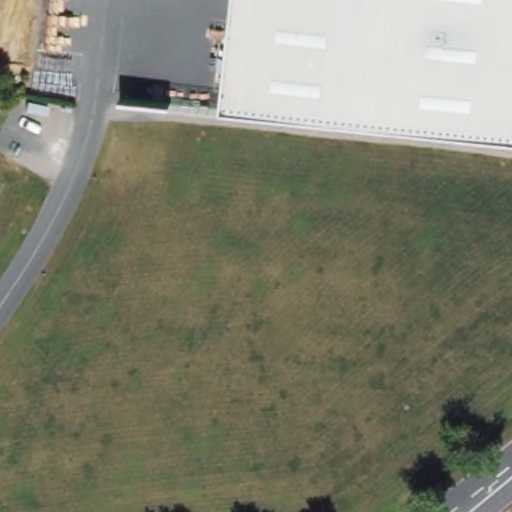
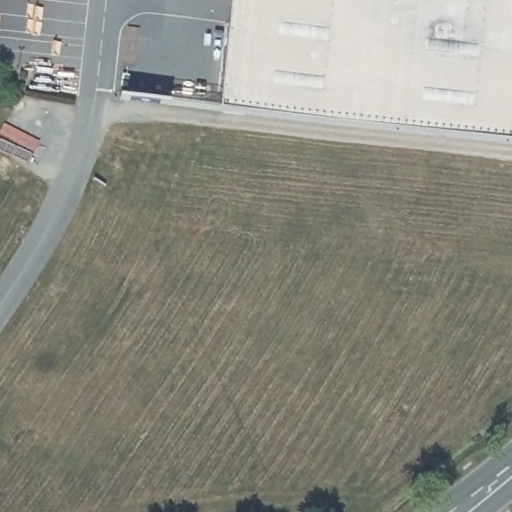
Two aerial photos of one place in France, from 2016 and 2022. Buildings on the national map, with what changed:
unchanged [(217,110),(229,0),(512,0),(512,143),(217,110)]

